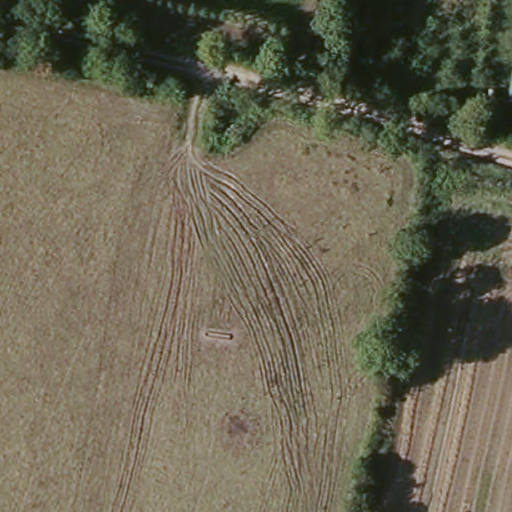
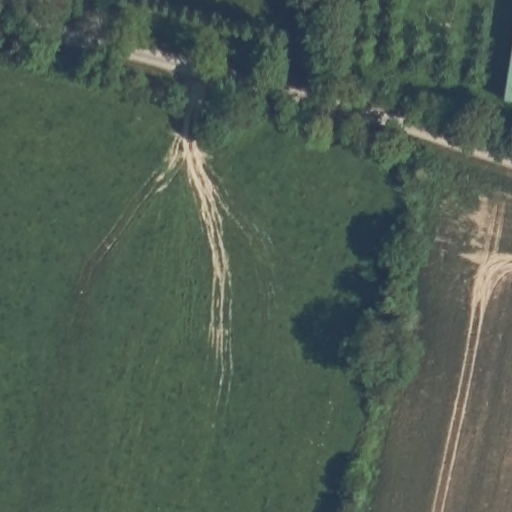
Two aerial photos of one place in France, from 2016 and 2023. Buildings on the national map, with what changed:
unchanged [(512,99),(508,99),(512,77),(512,99)]

